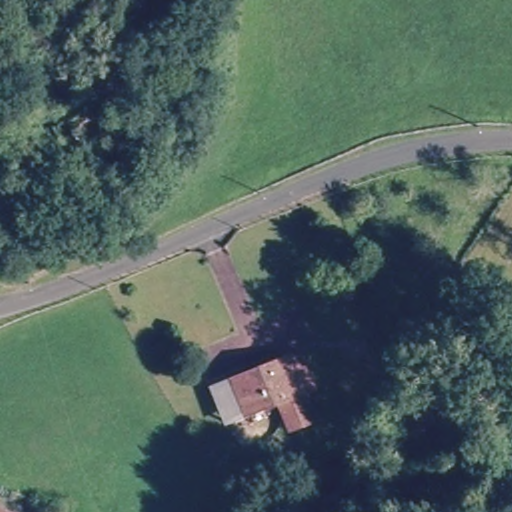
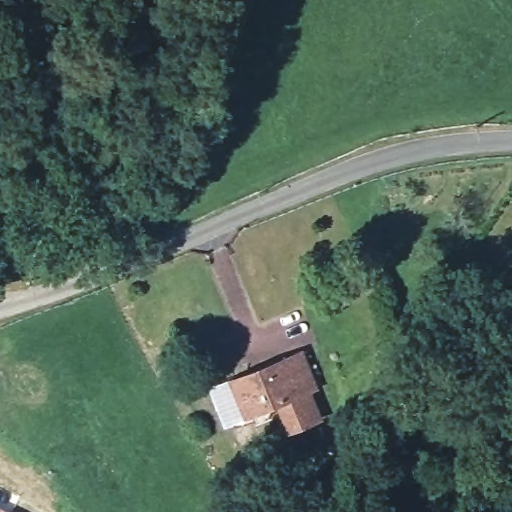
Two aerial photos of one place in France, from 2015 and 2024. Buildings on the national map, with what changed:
unchanged [(211,392),(231,383),(300,354),(314,386),(300,392),(312,417),(288,427),(277,402),(246,415),(225,424),(211,392)]
unchanged [(10,512),(0,512),(0,507),(10,512)]

